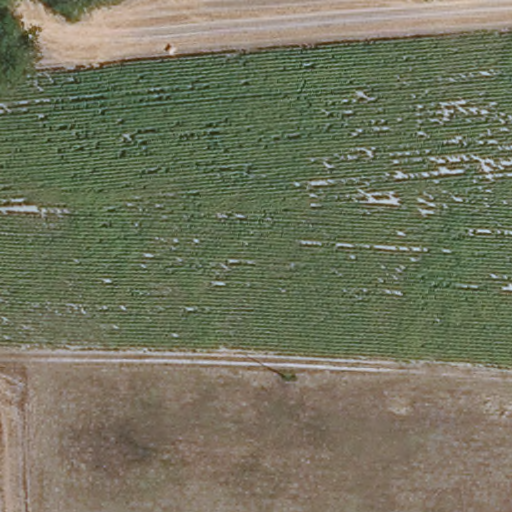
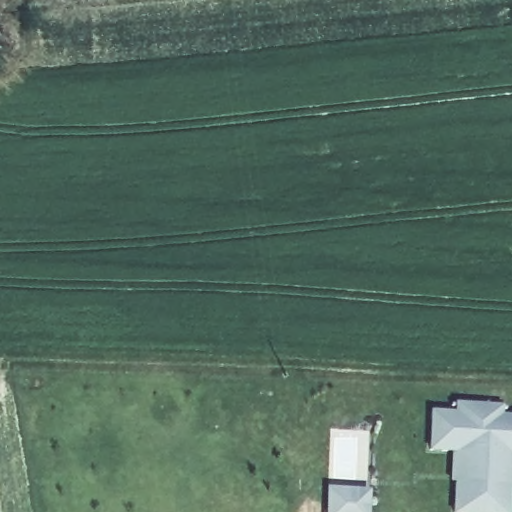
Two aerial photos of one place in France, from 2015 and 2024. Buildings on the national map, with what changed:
new [(455,403),(503,405),(502,413),(512,414),(512,499),(511,512),(452,512),(454,453),(427,453),(429,411),(454,411),(455,403)]
new [(371,488),(370,512),(324,512),(325,486),(371,488)]

